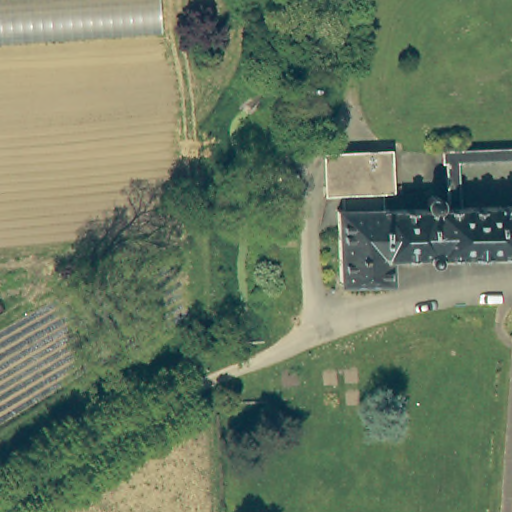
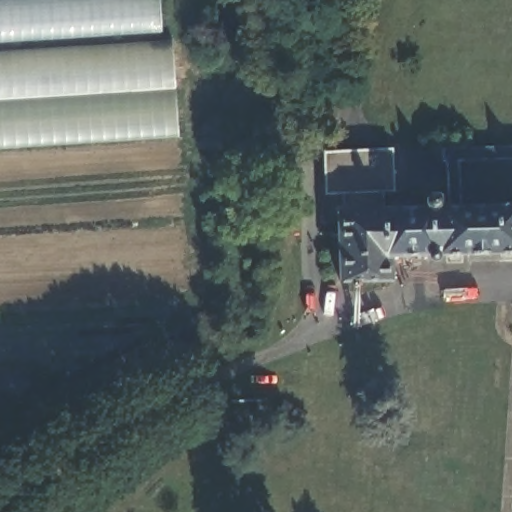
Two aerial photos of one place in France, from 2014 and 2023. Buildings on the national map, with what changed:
unchanged [(0,42),(0,0),(160,0),(161,32),(0,42)]
new [(179,137),(0,149),(0,52),(173,41),(179,137)]
unchanged [(460,157),(461,202),(448,203),(446,159),(441,159),(442,146),(512,144),(512,156),(460,157)]
unchanged [(343,207),(343,191),(339,191),(339,183),(329,182),(327,151),(389,148),(390,176),(380,188),(379,206),(343,207)]
unchanged [(379,206),(426,204),(426,196),(428,193),(434,193),(438,195),(438,203),(448,203),(461,202),(512,201),(512,250),(392,254),(391,279),(339,280),(338,207),(343,207),(379,206)]

